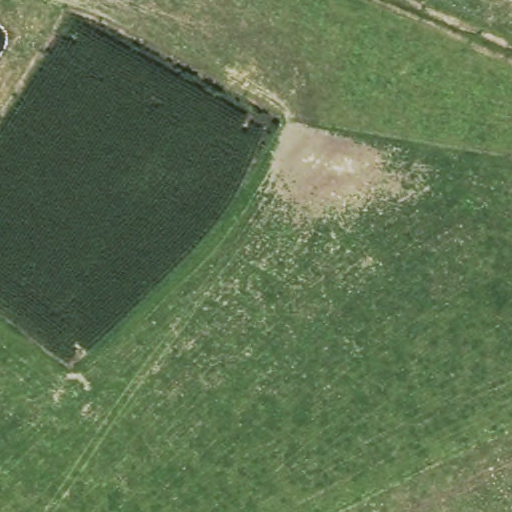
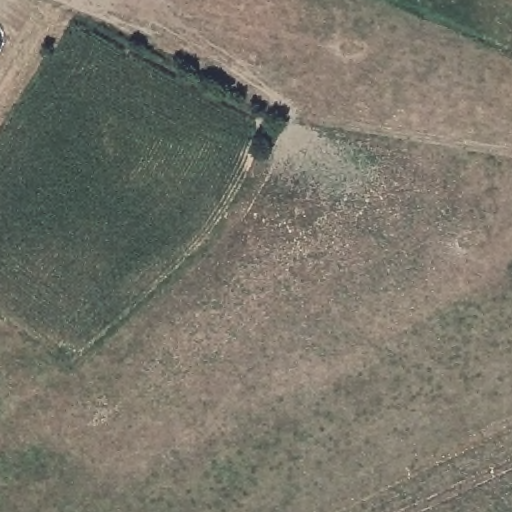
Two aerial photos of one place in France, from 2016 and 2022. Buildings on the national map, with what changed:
[]

